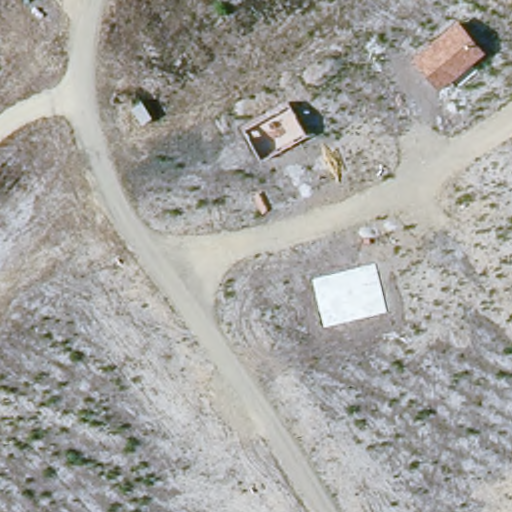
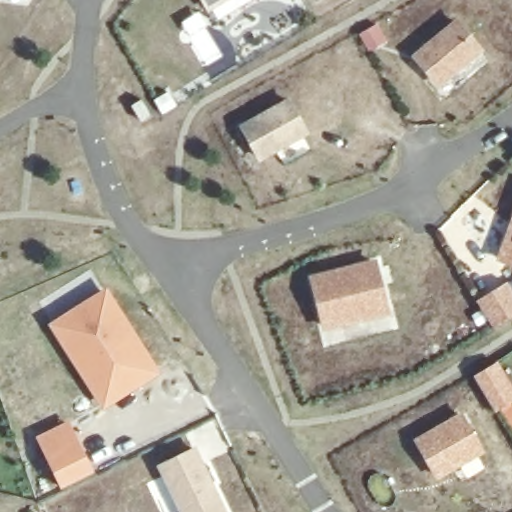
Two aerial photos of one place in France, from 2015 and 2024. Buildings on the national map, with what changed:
new [(202,0),(227,0),(208,11),(202,0)]
unchanged [(440,87),(411,54),(454,17),(482,51),(440,87)]
new [(311,133),(260,160),(238,124),(291,96),(311,133)]
new [(512,218),(512,265),(497,260),(512,218)]
new [(377,256),(392,312),(323,328),(309,274),(377,256)]
new [(512,286),(512,318),(493,328),(478,300),(509,280),(512,286)]
new [(162,373),(104,411),(49,324),(108,287),(162,373)]
new [(485,450),(436,478),(413,438),(462,410),(485,450)]
new [(94,471),(60,485),(36,437),(70,420),(94,471)]
new [(196,445),(230,512),(180,512),(156,464),(196,445)]

